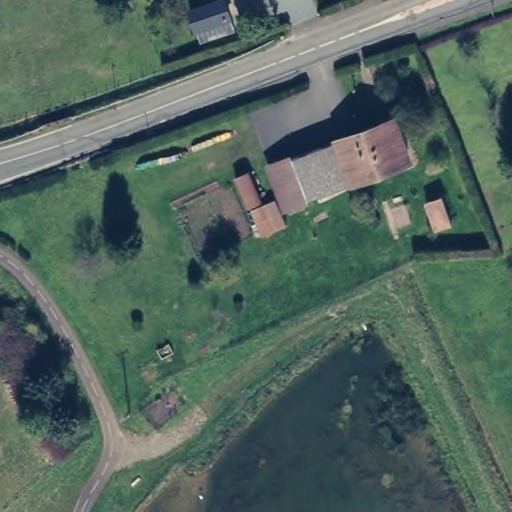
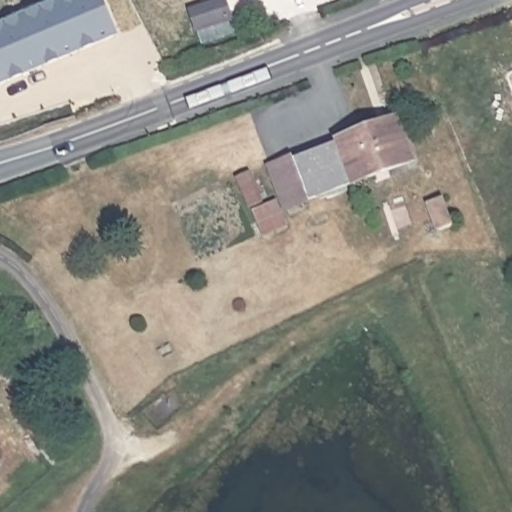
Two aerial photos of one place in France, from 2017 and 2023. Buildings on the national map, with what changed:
new [(114,34),(0,81),(0,25),(60,0),(99,0),(114,34)]
unchanged [(221,2),(227,21),(194,33),(187,14),(221,2)]
unchanged [(396,127),(411,167),(287,214),(272,174),(396,127)]
unchanged [(250,178),(265,208),(250,215),(236,185),(250,178)]
unchanged [(439,199),(449,226),(432,232),(422,204),(439,199)]
unchanged [(277,206),(289,232),(264,243),(252,217),(277,206)]

